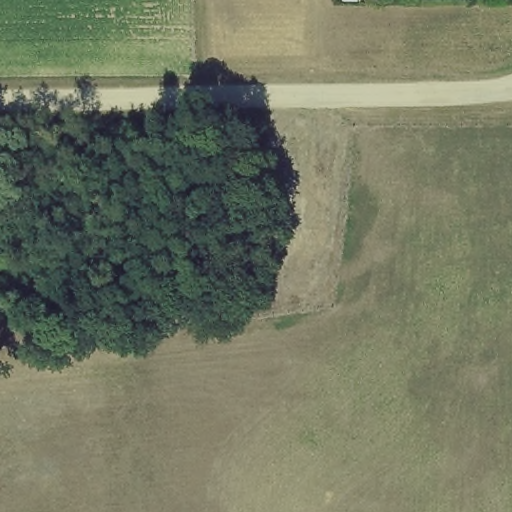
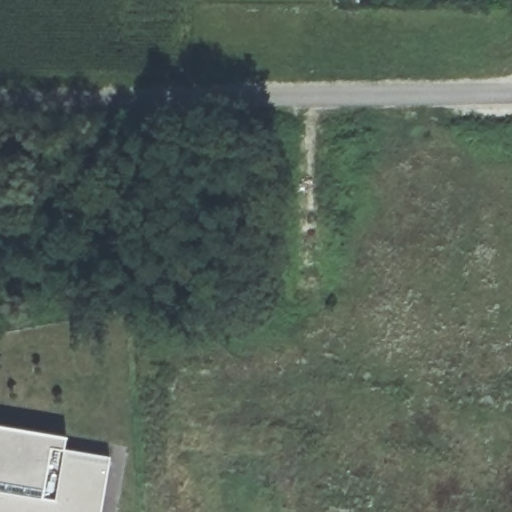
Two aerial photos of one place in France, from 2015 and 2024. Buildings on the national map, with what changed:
new [(65,438),(64,437),(62,448),(109,456),(100,512),(0,512),(0,425),(66,436),(65,438)]

